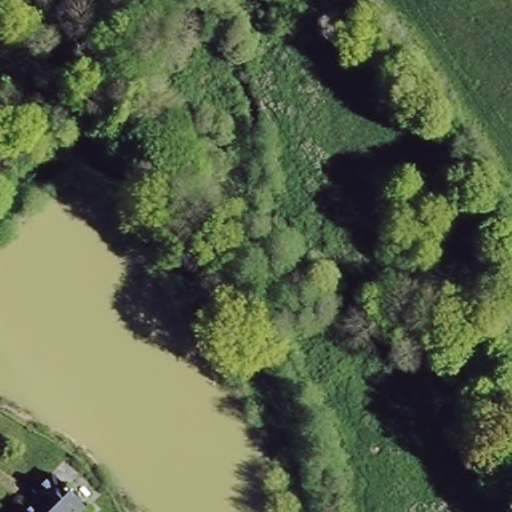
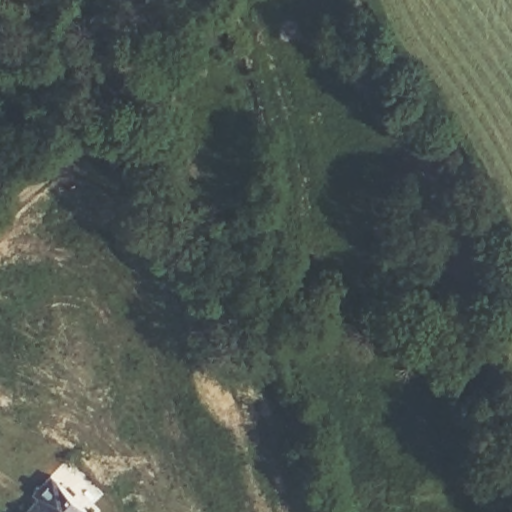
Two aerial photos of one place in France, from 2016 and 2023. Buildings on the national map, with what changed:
unchanged [(33,491),(47,477),(81,510),(80,512),(26,512),(38,499),(33,491)]

